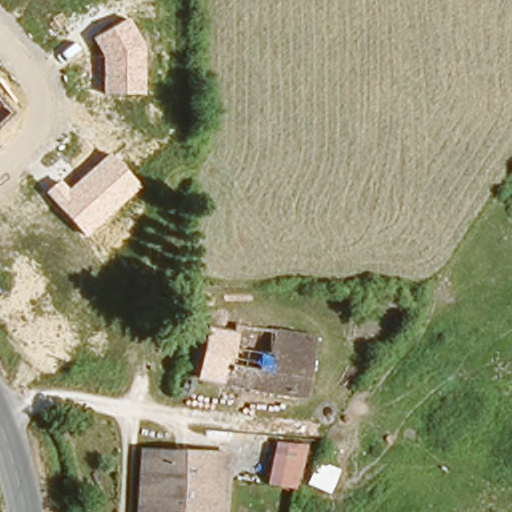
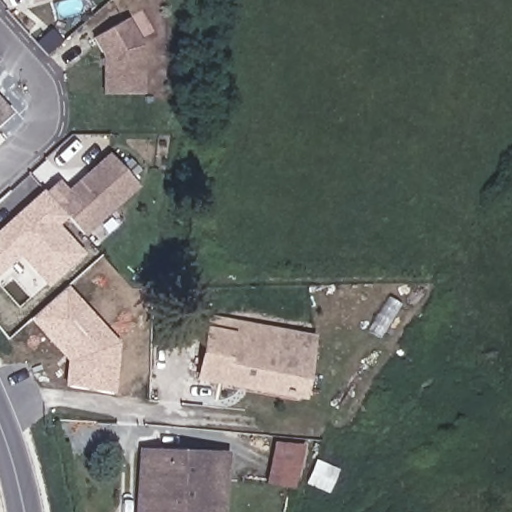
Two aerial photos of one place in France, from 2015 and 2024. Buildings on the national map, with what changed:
new [(32,2),(32,0),(41,0),(32,2)]
unchanged [(103,95),(102,56),(92,37),(129,16),(144,45),(144,94),(103,95)]
unchanged [(0,121),(0,103),(9,114),(0,121)]
unchanged [(85,237),(44,192),(60,180),(67,189),(109,154),(140,188),(85,237)]
new [(59,225),(85,254),(47,287),(19,256),(0,273),(0,228),(42,190),(44,192),(67,217),(59,225)]
new [(114,392),(64,388),(66,361),(31,320),(66,283),(120,343),(114,392)]
unchanged [(203,330),(229,333),(230,322),(309,339),(297,399),(272,393),(255,390),(193,377),(203,330)]
new [(294,492),(263,484),(275,440),(307,448),(294,492)]
unchanged [(222,512),(138,512),(142,450),(225,455),(222,512)]

